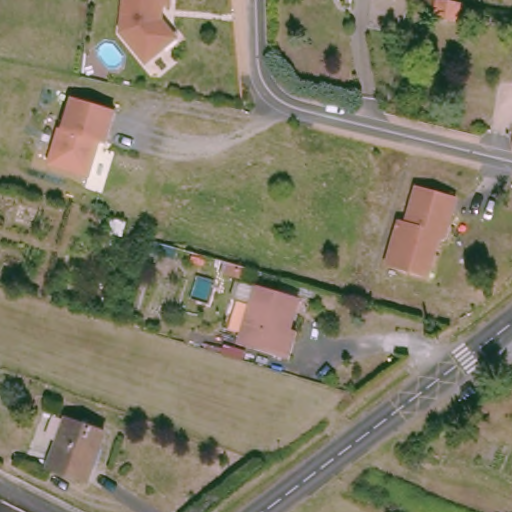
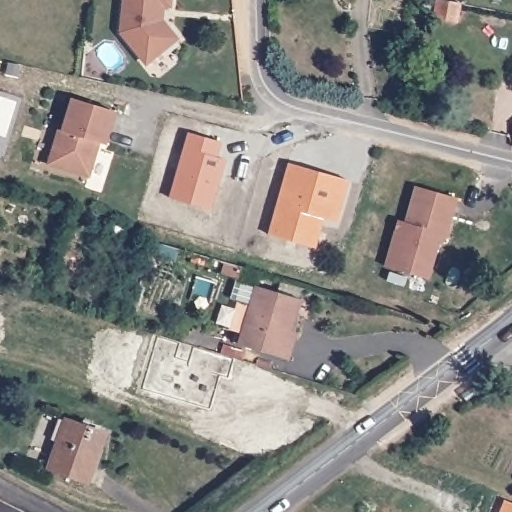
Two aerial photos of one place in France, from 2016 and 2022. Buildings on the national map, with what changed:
unchanged [(169,51),(150,66),(127,34),(130,0),(176,0),(175,8),(165,8),(164,20),(175,34),(181,41),(169,51)]
new [(10,60),(20,63),(18,74),(7,72),(10,60)]
unchanged [(117,110),(107,142),(97,139),(95,148),(97,153),(91,175),(51,163),(61,128),(65,129),(74,97),(117,110)]
new [(188,141),(220,150),(217,158),(226,161),(212,211),(172,200),(188,141)]
new [(347,182),(336,224),(320,220),(318,227),(321,228),(316,250),(270,239),(288,167),(347,182)]
unchanged [(436,244),(425,278),(385,266),(395,229),(398,220),(405,222),(410,207),(415,186),(455,198),(450,217),(443,239),(436,244)]
unchanged [(247,269),(245,279),(225,274),(228,264),(247,269)]
unchanged [(241,340),(258,286),(300,299),(292,327),(298,329),(290,355),(241,340)]
unchanged [(68,420),(106,434),(91,480),(53,466),(68,420)]
new [(512,502),(512,512),(498,512),(504,499),(512,502)]

